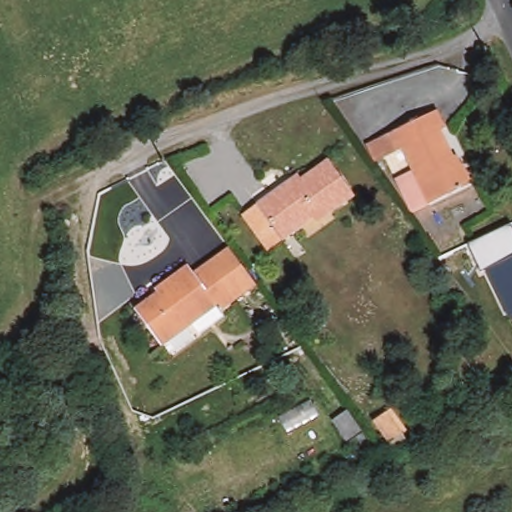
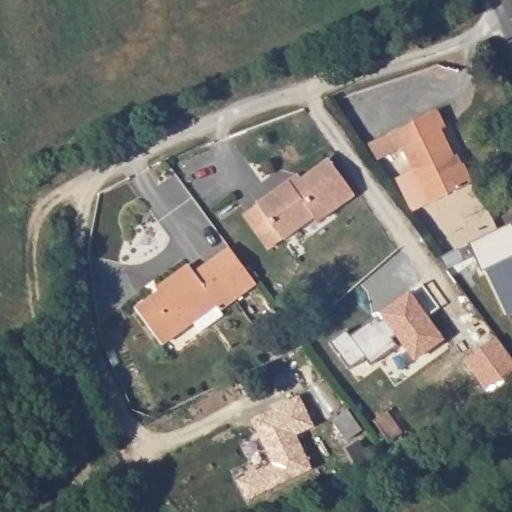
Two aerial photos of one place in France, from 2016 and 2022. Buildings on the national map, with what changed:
unchanged [(464,164),(473,181),(430,203),(401,149),(375,161),(366,144),(437,110),(444,125),(438,129),(454,157),(459,154),(464,164)]
unchanged [(242,210),(257,199),(287,178),(298,170),(302,177),(329,158),(353,193),(328,211),(317,219),(314,216),(297,228),(284,237),(269,248),(242,210)]
unchanged [(509,318),(487,269),(482,272),(469,243),(511,225),(512,227),(512,317),(509,318)]
unchanged [(164,343),(140,309),(158,295),(153,289),(186,265),(193,273),(208,261),(232,245),(258,282),(235,298),(218,310),(215,306),(194,321),(164,343)]
new [(412,358),(396,334),(390,337),(396,345),(368,364),(363,357),(347,368),(327,341),(344,328),(348,334),(408,292),(421,282),(438,306),(425,316),(441,338),(412,358)]
new [(485,390),(463,359),(495,335),(512,360),(512,377),(485,390)]
new [(303,396),(317,427),(298,435),(314,469),(248,501),(239,480),(274,464),(258,428),(262,426),(257,417),(303,396)]
unchanged [(348,409),(362,429),(347,439),(333,419),(348,409)]
unchanged [(391,409),(405,429),(388,441),(375,420),(391,409)]

